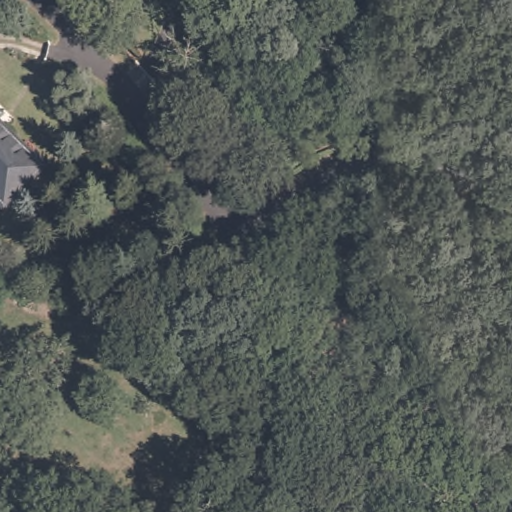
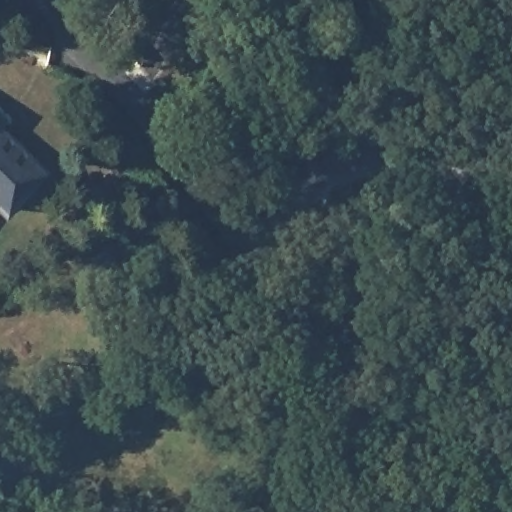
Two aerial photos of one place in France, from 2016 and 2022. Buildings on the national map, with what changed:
unchanged [(5,202),(0,197),(0,123),(40,161),(5,202)]

